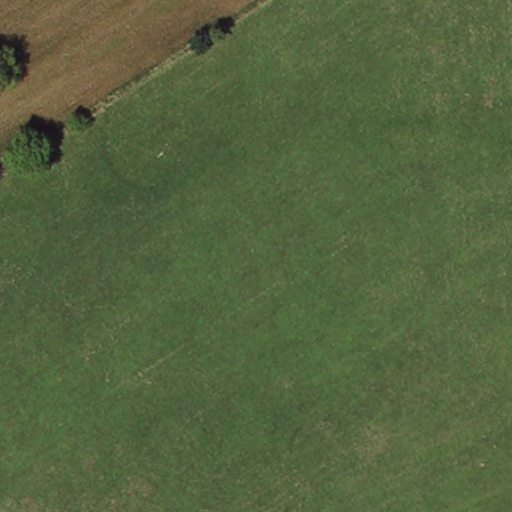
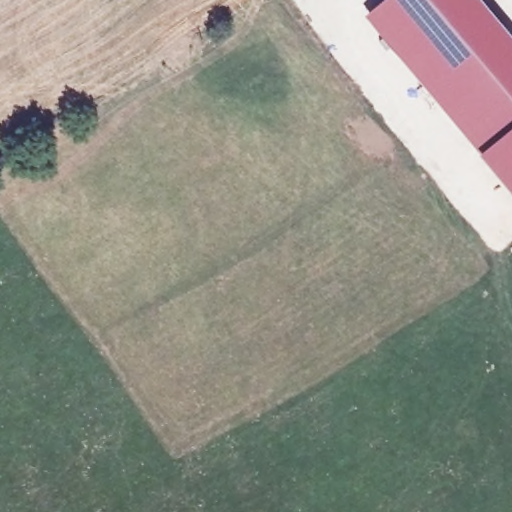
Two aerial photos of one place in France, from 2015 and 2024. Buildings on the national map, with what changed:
new [(386,0),(485,0),(512,32),(512,187),(485,153),(368,15),(386,0)]

